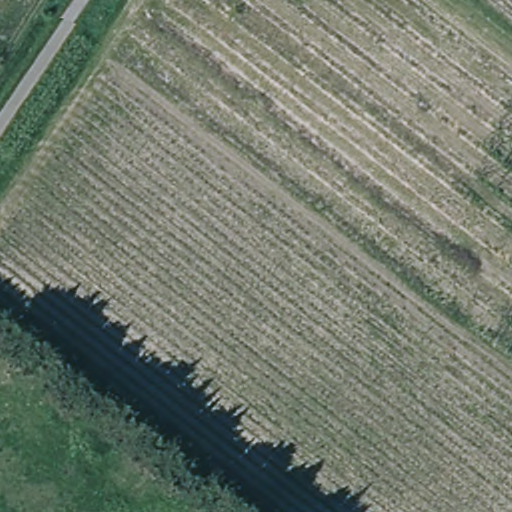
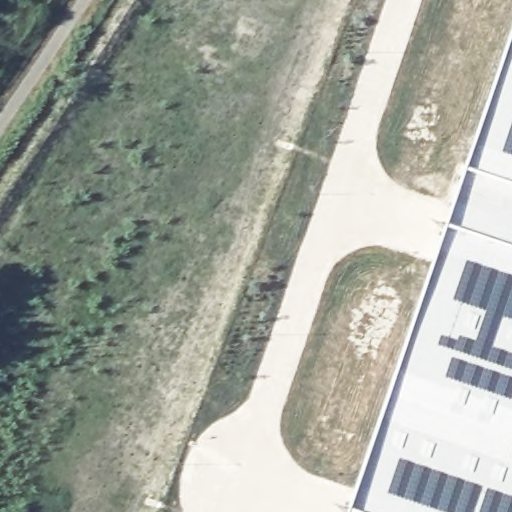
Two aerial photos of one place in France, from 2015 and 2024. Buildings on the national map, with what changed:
new [(512,77),(512,512),(363,512),(512,77)]

